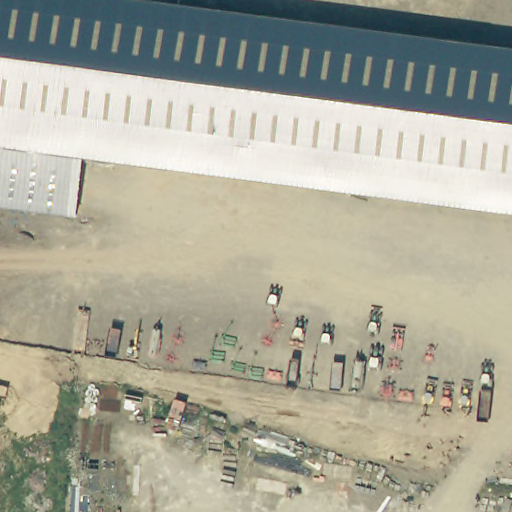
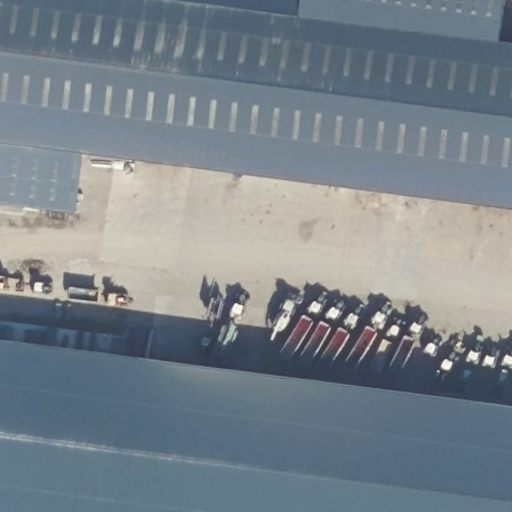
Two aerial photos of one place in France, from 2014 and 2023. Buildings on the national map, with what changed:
unchanged [(85,158),(77,216),(0,206),(0,15),(2,0),(144,0),(512,48),(512,213),(85,158)]
new [(305,0),(506,0),(500,46),(302,21),(305,0)]
new [(0,344),(275,380),(258,512),(0,512),(0,344)]
new [(512,413),(512,512),(258,512),(275,380),(512,413)]

